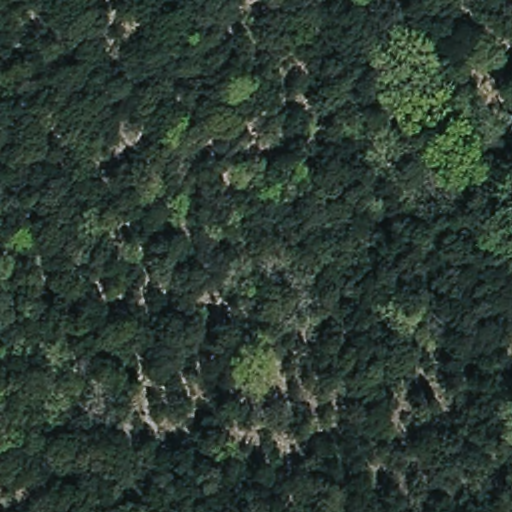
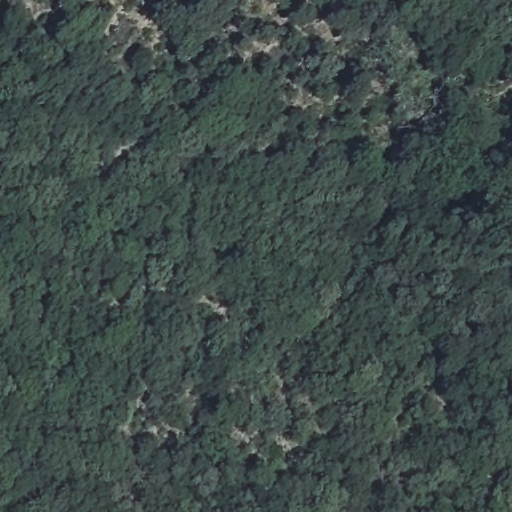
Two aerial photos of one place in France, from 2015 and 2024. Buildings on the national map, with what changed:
[]

